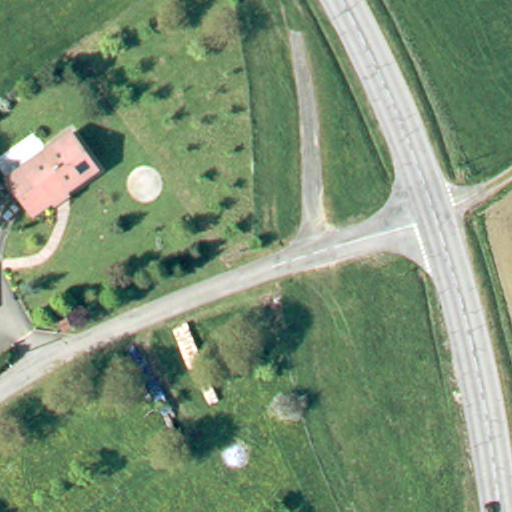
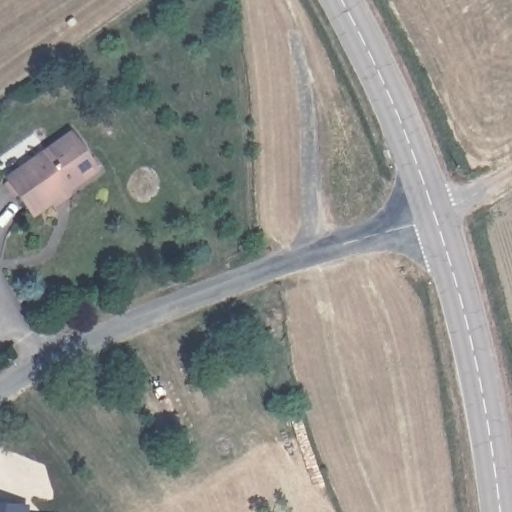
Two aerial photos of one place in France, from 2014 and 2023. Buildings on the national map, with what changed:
unchanged [(100,173),(55,201),(57,205),(35,218),(10,180),(76,136),(100,173)]
new [(28,504),(27,512),(0,512),(0,502),(28,504)]

